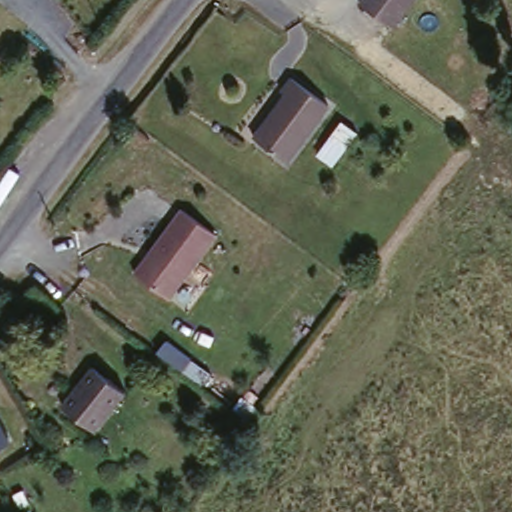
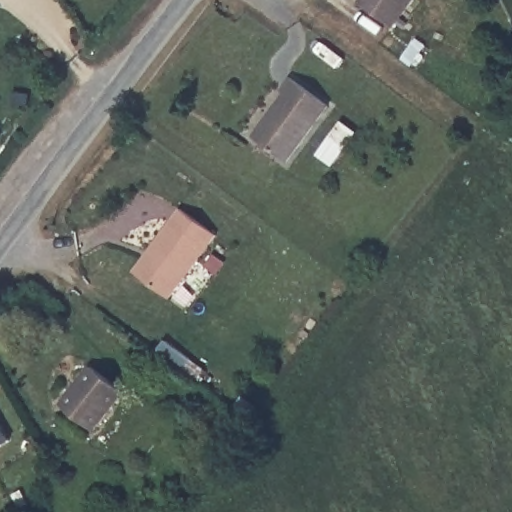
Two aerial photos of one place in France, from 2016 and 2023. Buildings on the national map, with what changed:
unchanged [(370,0),(411,0),(396,20),(370,0)]
unchanged [(285,91),(280,87),(290,74),(328,102),(287,158),(253,134),(285,91)]
unchanged [(182,217),(216,244),(171,303),(136,277),(182,217)]
unchanged [(94,364),(128,389),(98,429),(66,402),(94,364)]
unchanged [(0,443),(0,434),(4,441),(0,443)]

